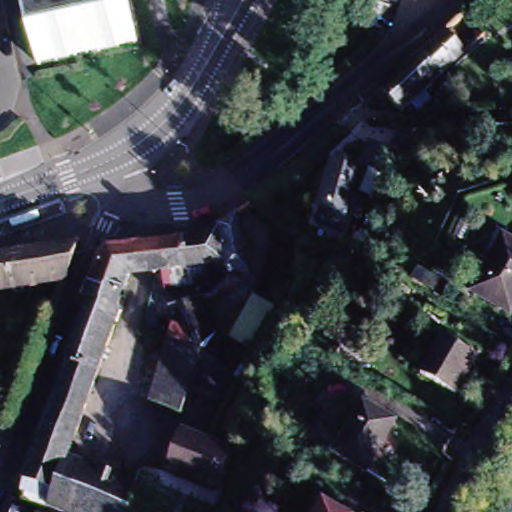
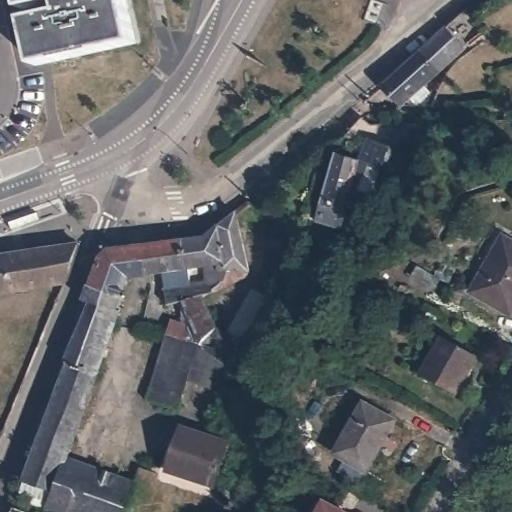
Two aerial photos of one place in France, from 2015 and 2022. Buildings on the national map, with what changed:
unchanged [(134,45),(50,63),(35,65),(21,0),(124,0),(134,45)]
unchanged [(464,41),(462,39),(469,30),(473,26),(478,30),(474,34),(473,32),(464,41)]
unchanged [(429,106),(400,106),(382,86),(446,29),(464,50),(424,85),(431,85),(429,106)]
unchanged [(392,147),(370,197),(364,195),(347,190),(355,160),(358,160),(368,139),(374,141),(392,147)]
unchanged [(336,220),(338,221),(341,212),(318,204),(331,154),(355,160),(347,190),(364,195),(354,229),(346,247),(323,239),(336,220)]
unchanged [(19,493),(53,405),(48,403),(58,376),(63,378),(68,366),(64,365),(83,312),(86,304),(84,303),(89,287),(100,258),(109,251),(136,248),(143,247),(151,245),(178,242),(201,240),(220,225),(235,212),(248,269),(247,271),(246,273),(241,277),(238,280),(233,283),(221,287),(217,288),(204,292),(203,293),(197,295),(196,295),(193,296),(180,300),(178,300),(176,301),(166,305),(161,272),(148,275),(145,275),(127,277),(119,298),(114,310),(119,311),(115,323),(114,325),(64,459),(46,508),(31,503),(21,500),(23,495),(19,493)]
unchanged [(301,230),(291,272),(261,274),(259,274),(269,216),(301,230)]
unchanged [(473,295),(504,242),(512,247),(512,315),(512,316),(473,295)]
unchanged [(49,284),(0,293),(0,255),(74,244),(62,282),(50,311),(40,309),(49,284)]
unchanged [(187,381),(179,407),(147,398),(166,337),(166,335),(171,321),(188,326),(176,301),(178,300),(180,300),(193,296),(196,295),(197,295),(203,293),(210,315),(218,326),(241,332),(259,274),(261,274),(291,272),(276,315),(236,375),(231,370),(223,393),(187,381)]
unchanged [(472,360),(449,395),(416,375),(439,340),(472,360)]
unchanged [(394,421),(364,470),(336,452),(366,404),(394,421)]
unchanged [(226,444),(212,487),(166,472),(180,428),(226,444)]
unchanged [(135,483),(124,512),(57,512),(49,510),(46,508),(64,459),(135,483)]
unchanged [(49,510),(48,512),(28,512),(31,503),(46,508),(49,510)]

